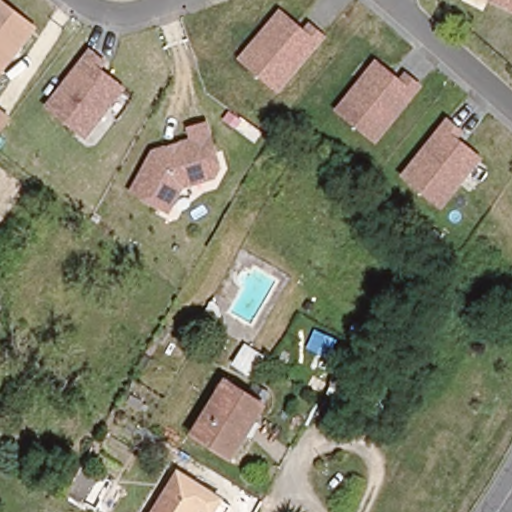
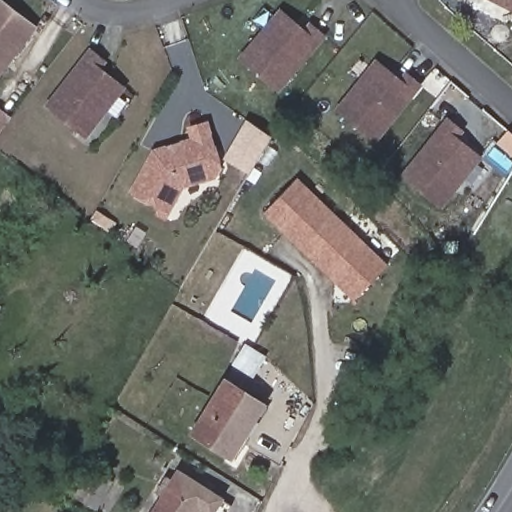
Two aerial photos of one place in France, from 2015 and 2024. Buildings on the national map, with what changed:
unchanged [(0,77),(0,0),(2,0),(39,28),(0,77)]
unchanged [(490,0),(512,0),(512,11),(490,0)]
unchanged [(282,12),(306,31),(312,25),(325,36),(280,95),(237,60),(282,12)]
unchanged [(47,106),(89,50),(109,63),(103,70),(127,89),(87,137),(47,106)]
unchanged [(377,59),(400,77),(406,72),(423,83),(376,144),(337,109),(377,59)]
unchanged [(0,137),(0,107),(15,118),(0,137)]
unchanged [(402,175),(448,118),(465,131),(459,138),(483,159),(443,209),(402,175)]
unchanged [(205,123),(219,167),(215,176),(182,185),(169,210),(132,191),(153,152),(166,148),(171,150),(177,148),(180,143),(192,139),(189,128),(205,123)]
new [(293,177),(339,221),(385,264),(352,298),(261,211),(293,177)]
unchanged [(268,356),(252,380),(227,365),(245,343),(268,356)]
unchanged [(225,386),(261,408),(230,459),(193,436),(225,386)]
unchanged [(71,494),(88,465),(116,480),(100,510),(71,494)]
unchanged [(202,489),(211,495),(200,512),(154,512),(178,475),(202,489)]

